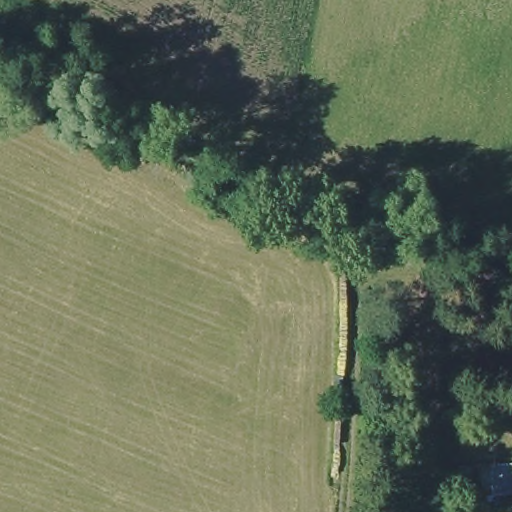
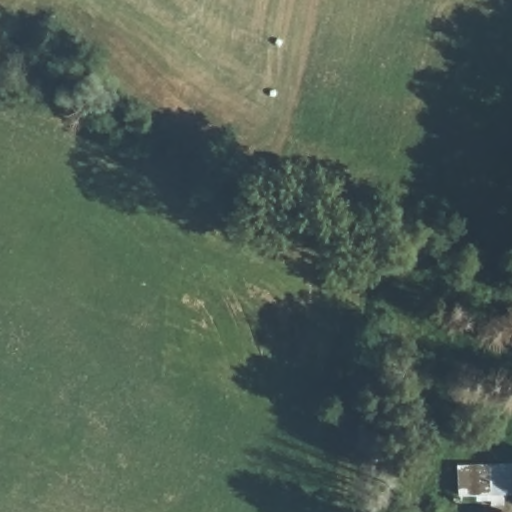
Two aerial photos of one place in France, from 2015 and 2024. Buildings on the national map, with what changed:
unchanged [(461,501),(456,471),(512,466),(512,495),(461,501)]

